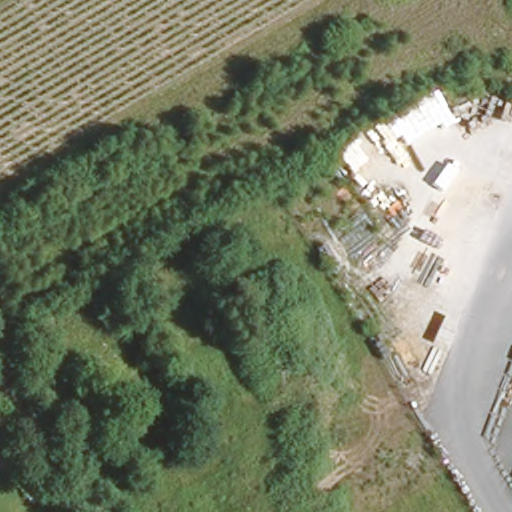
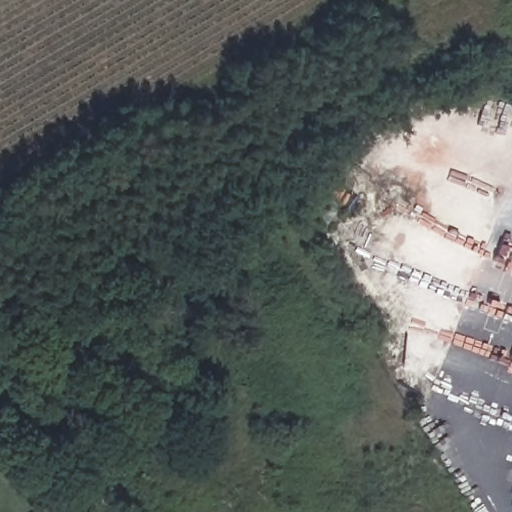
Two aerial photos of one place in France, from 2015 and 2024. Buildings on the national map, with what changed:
[]

